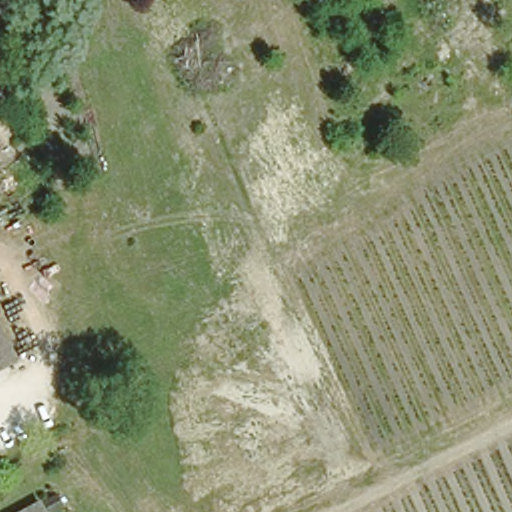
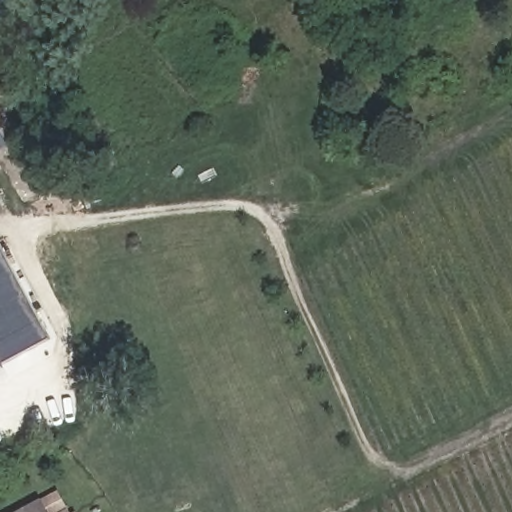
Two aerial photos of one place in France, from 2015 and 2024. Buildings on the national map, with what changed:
new [(0,325),(0,243),(50,338),(4,364),(5,366),(0,368),(0,353),(12,347),(0,325)]
unchanged [(0,353),(0,325),(12,347),(0,353)]
unchanged [(40,512),(20,512),(35,504),(40,512)]

